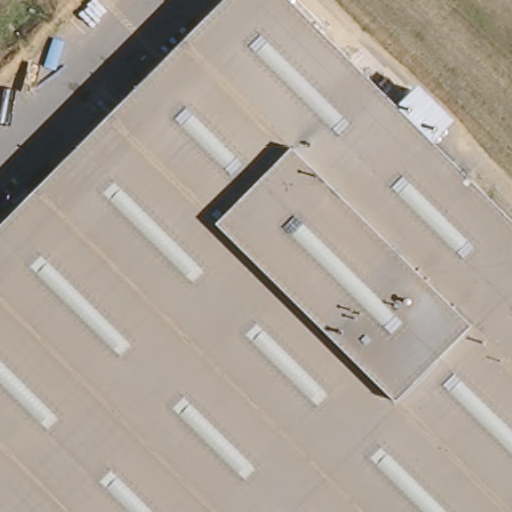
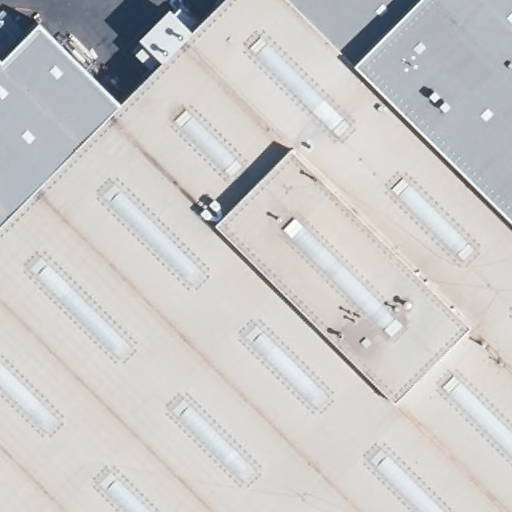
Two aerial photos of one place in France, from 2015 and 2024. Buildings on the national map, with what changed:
unchanged [(512,225),(512,512),(0,512),(0,219),(219,0),(284,0),(512,225)]
new [(347,62),(284,0),(512,0),(512,225),(347,62)]
new [(166,6),(189,29),(159,60),(136,37),(166,6)]
new [(118,101),(0,219),(0,57),(35,20),(118,101)]

